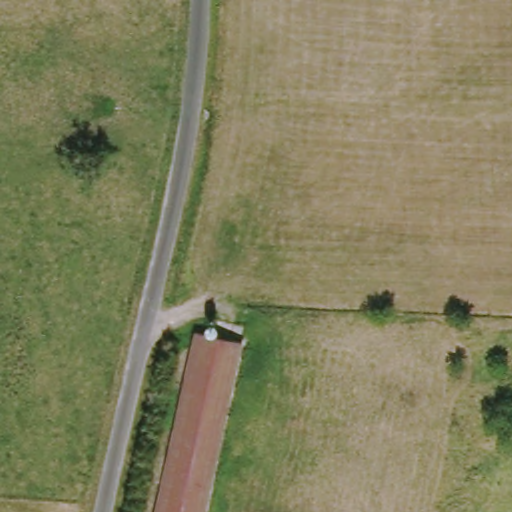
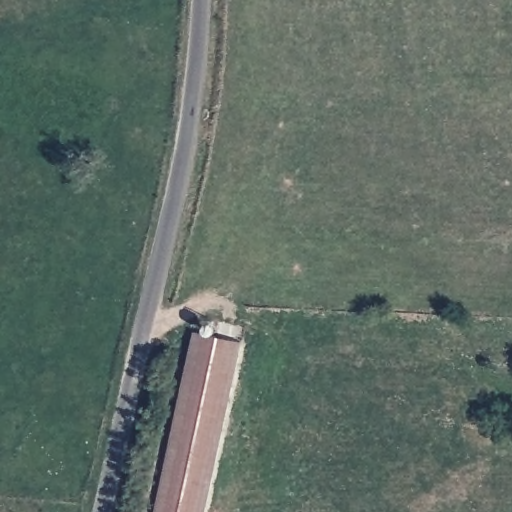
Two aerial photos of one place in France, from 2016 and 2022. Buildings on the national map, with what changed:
unchanged [(159,512),(194,330),(242,340),(208,512),(159,512)]

